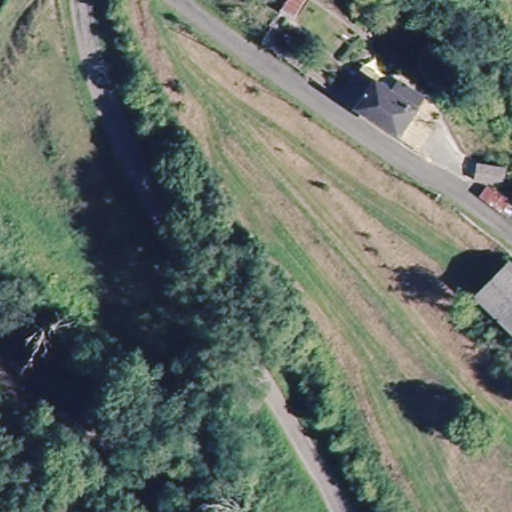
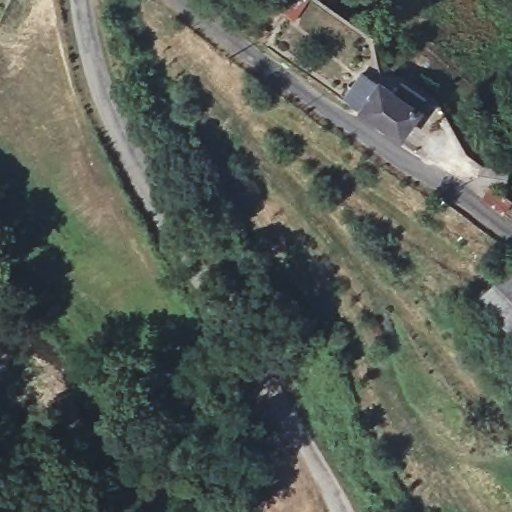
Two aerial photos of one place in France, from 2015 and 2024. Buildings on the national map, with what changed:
unchanged [(309,0),(299,16),(285,7),(289,0),(309,0)]
unchanged [(362,64),(397,90),(405,78),(430,96),(421,110),(416,107),(401,130),(345,86),(353,76),(362,64)]
unchanged [(489,161),(510,172),(506,193),(485,177),(489,161)]
unchanged [(512,330),(477,297),(509,261),(512,263),(512,330)]

